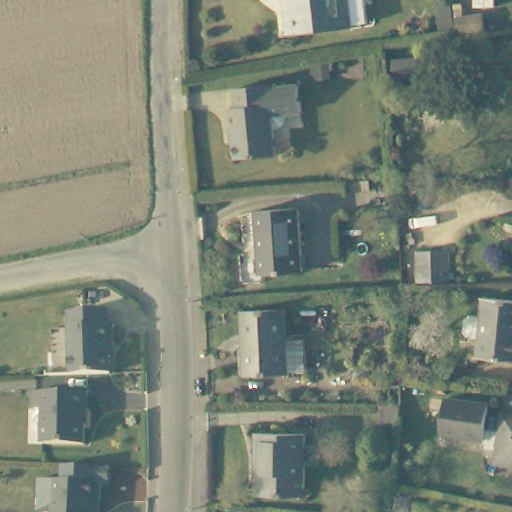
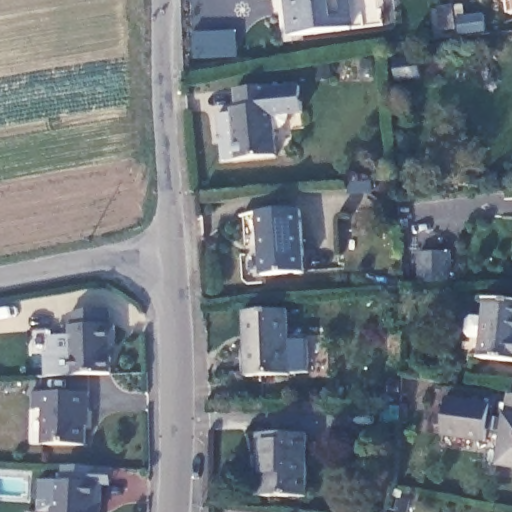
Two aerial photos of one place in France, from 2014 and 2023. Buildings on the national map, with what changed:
unchanged [(351,25),(352,27),(288,35),(285,0),(349,0),(351,25)]
unchanged [(383,16),(351,25),(349,0),(381,0),(383,16)]
unchanged [(455,17),(482,14),(485,33),(457,37),(455,17)]
new [(237,57),(192,59),(191,33),(236,30),(237,57)]
unchanged [(415,77),(396,80),(395,65),(413,62),(415,77)]
unchanged [(297,109),(266,112),(270,152),(232,156),(227,105),(232,104),(230,86),(265,82),(265,86),(295,83),(297,109)]
unchanged [(303,273),(261,277),(256,214),(298,210),(303,273)]
unchanged [(421,287),(420,253),(450,252),(452,286),(421,287)]
unchanged [(512,360),(477,356),(485,298),(512,301),(512,360)]
unchanged [(285,309),(287,341),(305,341),(306,372),(288,372),(289,375),(246,376),(244,311),(285,309)]
unchanged [(69,314),(109,312),(110,324),(115,328),(115,345),(110,350),(111,374),(72,376),(69,314)]
unchanged [(92,385),(89,441),(30,438),(32,400),(39,400),(40,382),(92,385)]
unchanged [(499,442),(485,440),(483,452),(441,445),(444,410),(487,415),(487,426),(501,427),(505,402),(512,402),(512,475),(495,472),(499,442)]
unchanged [(305,435),(305,497),(261,496),(262,457),(257,457),(257,433),(305,435)]
unchanged [(102,504),(92,505),(92,512),(52,512),(54,483),(100,486),(102,504)]

